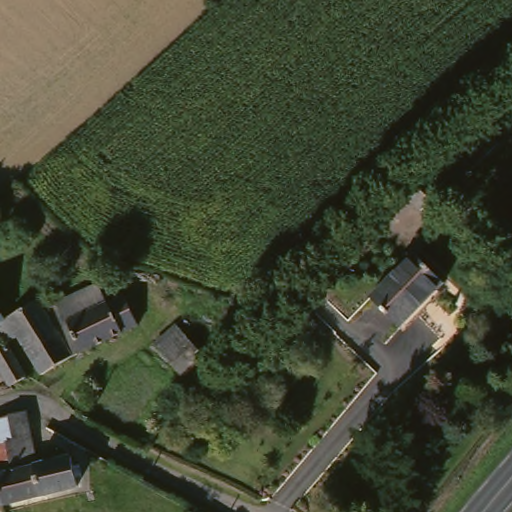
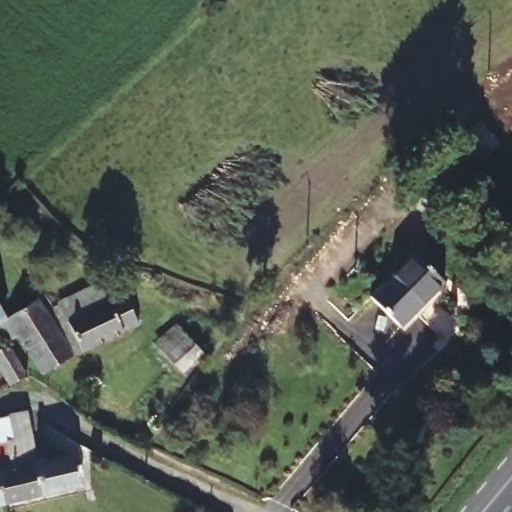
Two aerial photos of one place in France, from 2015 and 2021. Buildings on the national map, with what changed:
unchanged [(475,176),(466,168),(442,193),(430,183),(475,133),(497,152),(475,176)]
unchanged [(427,225),(406,206),(423,187),(444,206),(427,225)]
unchanged [(401,330),(369,302),(411,257),(442,285),(401,330)]
unchanged [(56,329),(127,291),(145,321),(90,353),(87,350),(50,374),(25,337),(15,341),(5,321),(0,323),(0,306),(5,317),(39,300),(56,329)]
unchanged [(180,377),(160,342),(184,329),(204,363),(180,377)]
unchanged [(35,374),(20,383),(3,354),(17,345),(35,374)]
unchanged [(0,491),(0,423),(25,416),(36,459),(37,466),(45,497),(5,509),(0,510),(0,491)]
unchanged [(70,457),(80,487),(45,497),(37,466),(70,457)]

